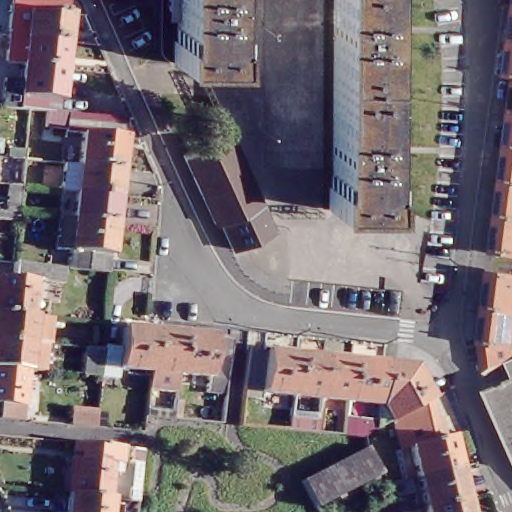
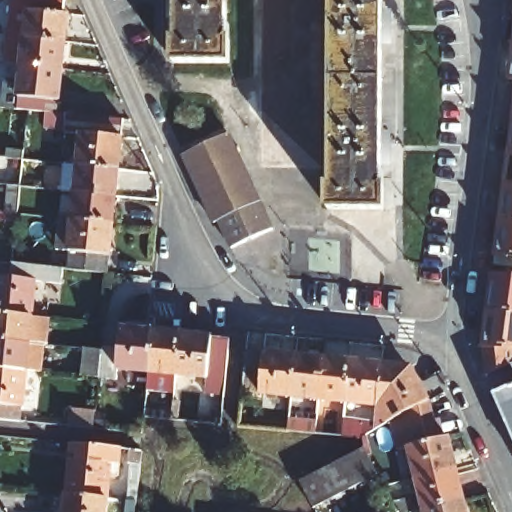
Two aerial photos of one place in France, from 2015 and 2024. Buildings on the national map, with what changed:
unchanged [(9,27),(11,0),(65,0),(65,4),(69,5),(66,33),(9,27)]
unchanged [(226,28),(229,28),(228,52),(173,51),(173,28),(175,28),(176,0),(226,0),(226,28)]
unchanged [(380,180),(383,181),(383,203),(327,203),(327,180),(330,180),(332,0),(381,0),(380,180)]
unchanged [(508,41),(512,13),(512,42),(508,41)]
unchanged [(23,56),(7,55),(9,27),(66,33),(63,60),(23,56)]
unchanged [(503,75),(508,41),(512,42),(512,76),(503,75)]
unchanged [(59,105),(47,104),(25,102),(23,102),(15,101),(2,100),(5,73),(22,74),(23,56),(63,60),(59,105)]
unchanged [(508,112),(512,87),(512,113),(508,112)]
unchanged [(80,157),(83,125),(68,123),(68,121),(45,119),(47,104),(59,105),(125,111),(121,160),(80,157)]
unchanged [(503,147),(508,112),(512,113),(512,149),(503,147)]
unchanged [(197,147),(233,130),(265,198),(220,219),(215,222),(184,153),(197,147)]
unchanged [(498,181),(503,147),(512,149),(512,183),(498,181)]
unchanged [(0,205),(2,205),(5,178),(8,151),(20,152),(35,153),(32,181),(17,179),(15,206),(13,214),(0,213),(0,205)]
unchanged [(78,184),(63,183),(65,156),(80,157),(121,160),(118,188),(78,184)]
unchanged [(512,183),(512,219),(493,216),(498,181),(512,183)]
unchanged [(75,211),(78,184),(118,188),(115,214),(75,211)]
unchanged [(278,225),(232,247),(220,219),(265,198),(278,225)]
unchanged [(61,259),(57,258),(62,210),(75,211),(115,214),(112,245),(108,244),(106,263),(61,259)]
unchanged [(488,251),(493,216),(512,219),(512,254),(488,251)]
unchanged [(32,272),(28,306),(0,303),(0,268),(8,269),(10,254),(57,258),(61,259),(59,274),(32,272)]
unchanged [(487,270),(512,274),(512,311),(481,307),(487,270)]
unchanged [(40,334),(0,330),(0,303),(28,306),(47,308),(44,334),(40,334)]
unchanged [(507,363),(482,375),(476,342),(481,307),(512,311),(512,375),(507,363)]
unchanged [(82,344),(100,346),(100,342),(118,344),(120,323),(152,327),(148,366),(117,363),(117,375),(97,373),(79,371),(82,344)]
unchanged [(175,369),(148,366),(152,327),(179,329),(175,369)]
unchanged [(225,374),(175,369),(179,329),(228,334),(225,374)]
unchanged [(37,361),(26,360),(22,360),(0,357),(0,330),(40,334),(37,361)]
unchanged [(295,352),(291,391),(242,386),(245,347),(295,352)]
unchanged [(322,354),(318,395),(314,430),(287,427),(291,391),(295,352),(322,354)]
unchanged [(350,357),(345,397),(318,395),(322,354),(350,357)]
unchanged [(22,360),(17,410),(5,409),(0,409),(0,357),(22,360)]
unchanged [(380,360),(382,360),(409,362),(427,396),(390,417),(372,428),(359,435),(341,433),(345,397),(350,357),(380,360)]
unchanged [(490,394),(512,385),(512,447),(490,394)]
unchanged [(432,415),(437,414),(442,433),(447,432),(454,465),(415,474),(408,443),(397,445),(390,417),(427,396),(432,415)]
unchanged [(150,398),(177,400),(175,420),(159,418),(148,417),(150,398)]
unchanged [(93,428),(72,426),(74,408),(99,411),(97,428),(93,428)]
unchanged [(65,439),(75,440),(115,444),(113,461),(104,460),(101,495),(60,491),(65,439)]
unchanged [(300,478),(362,444),(377,471),(312,504),(300,478)]
unchanged [(120,496),(122,467),(118,467),(120,445),(135,446),(133,468),(130,497),(120,496)]
unchanged [(461,496),(423,505),(415,474),(454,465),(461,496)]
unchanged [(101,495),(99,512),(59,512),(60,491),(101,495)]
unchanged [(425,512),(423,505),(461,496),(465,512),(425,512)]
unchanged [(416,512),(404,512),(397,501),(412,497),(416,512)]

